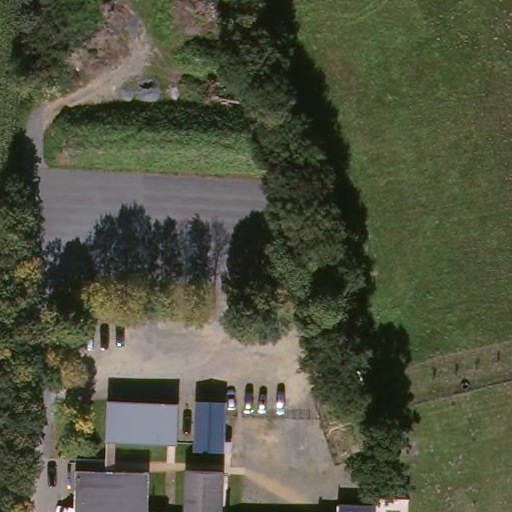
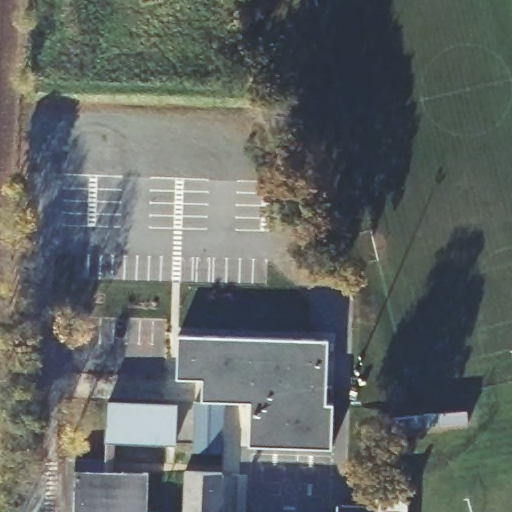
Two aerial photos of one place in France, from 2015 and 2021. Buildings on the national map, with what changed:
new [(325,405),(332,405),(330,449),(249,446),(250,403),(224,402),(202,401),(203,379),(178,378),(179,335),(326,340),(325,405)]
unchanged [(224,402),(222,449),(194,447),(195,400),(224,402)]
unchanged [(176,443),(107,441),(106,401),(177,403),(176,443)]
unchanged [(75,455),(105,455),(105,466),(148,467),(147,506),(165,507),(165,511),(134,510),(102,510),(99,510),(99,500),(74,499),(75,465),(75,455)]
unchanged [(184,465),(224,467),(222,511),(182,511),(184,465)]
unchanged [(372,506),(378,506),(378,497),(411,498),(411,512),(340,512),(340,505),(372,506)]
unchanged [(102,510),(134,510),(165,511),(165,512),(99,512),(99,510),(102,510)]
unchanged [(182,512),(182,511),(222,511),(222,512),(182,512)]

